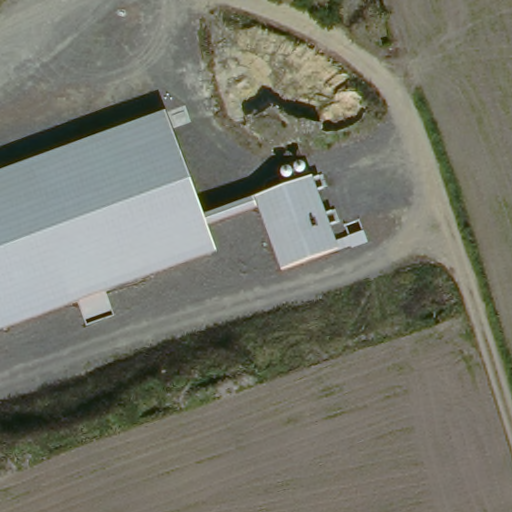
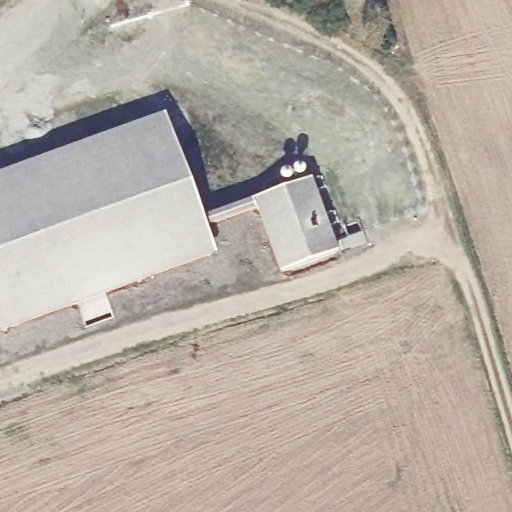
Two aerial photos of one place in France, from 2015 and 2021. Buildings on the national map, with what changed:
unchanged [(202,217),(312,177),(338,250),(279,271),(256,209),(207,227),(216,253),(0,332),(0,173),(164,114),(202,217)]

